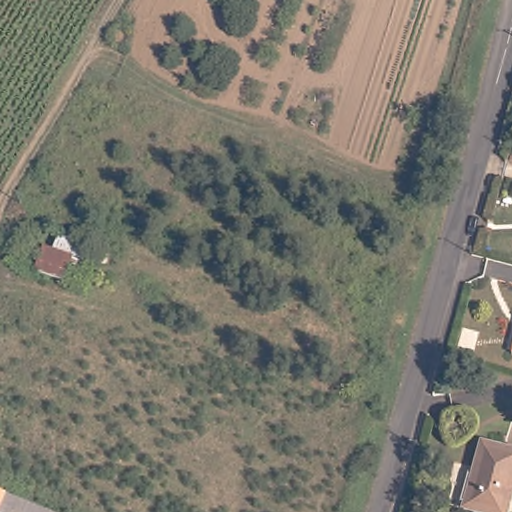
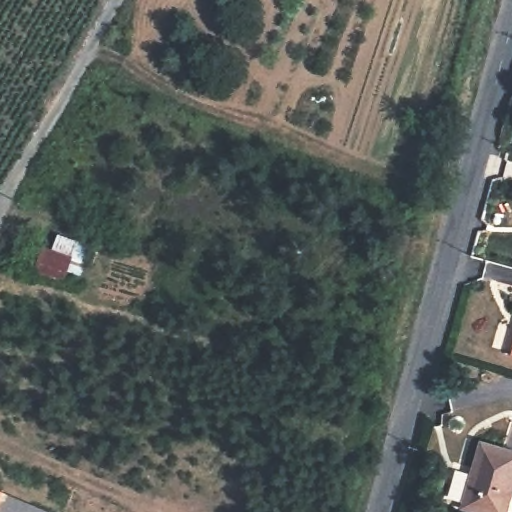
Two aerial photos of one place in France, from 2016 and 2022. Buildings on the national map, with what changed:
unchanged [(55,248),(61,232),(91,242),(86,257),(81,255),(70,282),(36,270),(46,246),(55,248)]
unchanged [(508,347),(512,336),(512,349),(508,347)]
unchanged [(483,443),(512,453),(512,477),(477,465),(483,443)]
unchanged [(488,512),(464,505),(477,465),(512,477),(512,501),(509,512),(488,512)]
unchanged [(0,493),(45,512),(2,512),(0,511),(0,493)]

